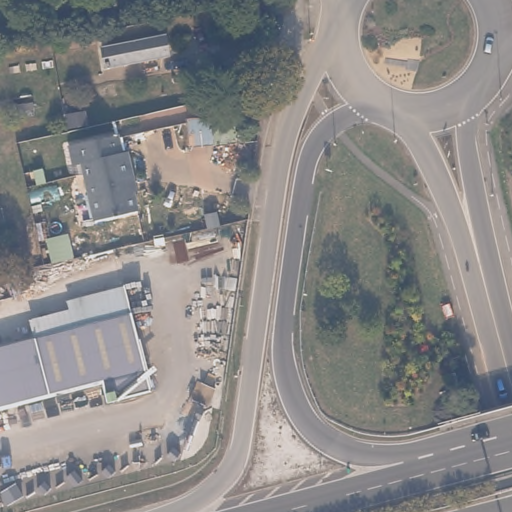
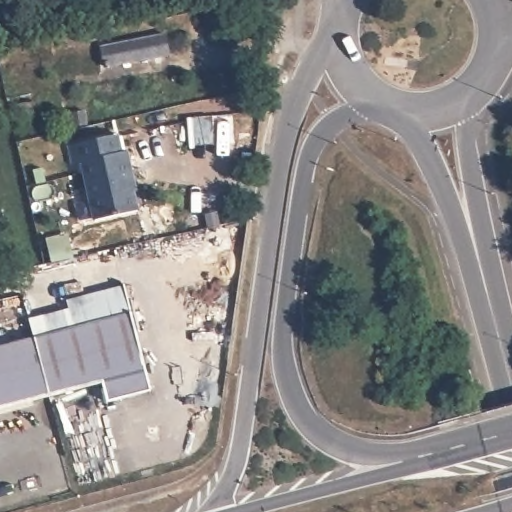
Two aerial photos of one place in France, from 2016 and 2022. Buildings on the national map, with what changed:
unchanged [(168,51),(110,63),(104,44),(164,31),(168,51)]
unchanged [(122,154),(127,153),(134,180),(130,181),(138,212),(97,221),(85,164),(74,166),(69,146),(118,136),(122,154)]
unchanged [(84,298),(94,324),(47,337),(40,315),(84,298)]
unchanged [(47,337),(94,324),(133,314),(155,394),(110,406),(104,383),(0,409),(0,349),(47,337)]

